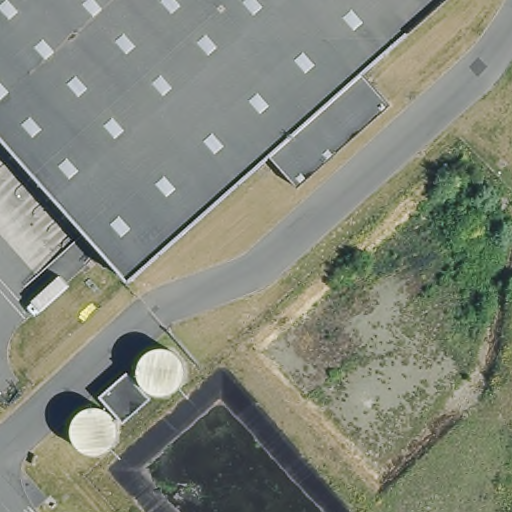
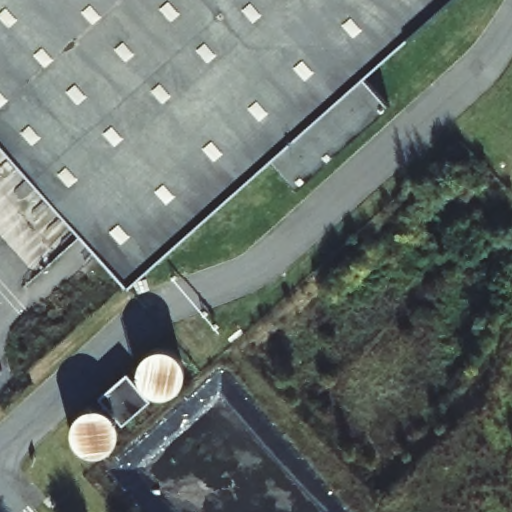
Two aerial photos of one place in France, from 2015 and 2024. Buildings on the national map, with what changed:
unchanged [(363,74),(374,86),(391,106),(297,188),(280,169),(270,157),(130,282),(102,251),(0,137),(0,0),(447,0),(363,74)]
unchanged [(180,387),(175,392),(170,394),(165,396),(159,396),(152,394),(147,391),(143,387),(140,382),(138,376),(138,370),(139,364),(142,359),(145,354),(150,351),(156,349),(162,348),(168,349),(174,351),(179,355),(182,359),(185,365),(185,371),(185,377),(184,382),(180,387)]
unchanged [(127,372),(152,398),(123,424),(100,397),(127,372)]
unchanged [(102,408),(107,410),(112,414),(115,418),(118,424),(119,430),(119,435),(117,441),(114,446),(109,450),(104,453),(98,454),(92,454),(87,453),(81,450),(77,446),(74,441),(72,435),(72,429),(72,423),(75,418),(79,413),(84,410),(90,408),(95,407),(102,408)]

